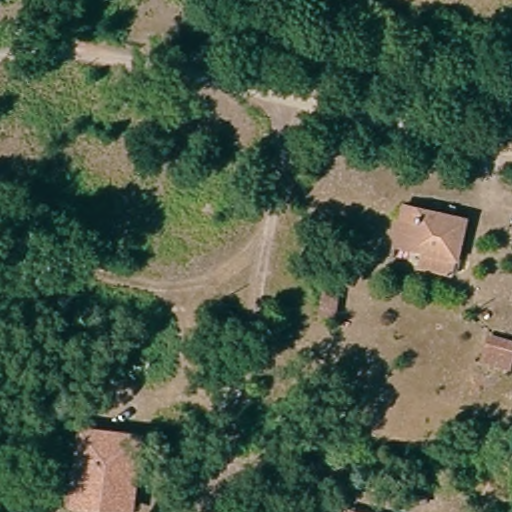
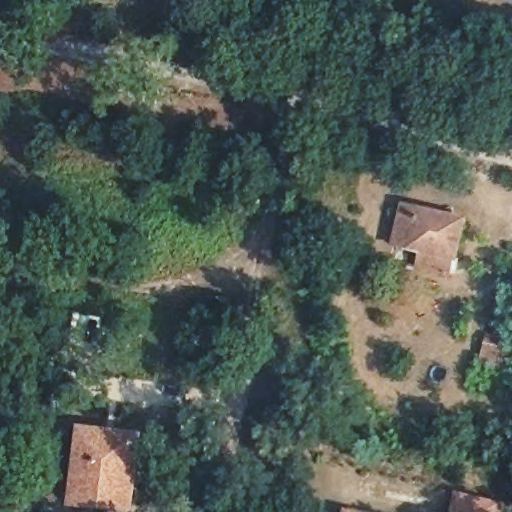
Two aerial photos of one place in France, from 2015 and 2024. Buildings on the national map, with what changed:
unchanged [(443,280),(418,274),(421,258),(391,251),(401,211),(463,225),(453,265),(450,280),(443,280)]
unchanged [(486,342),(488,333),(512,339),(512,371),(480,363),(486,342)]
unchanged [(66,498),(68,484),(77,425),(133,434),(124,492),(122,506),(66,498)]
new [(505,512),(449,512),(454,492),(507,504),(505,512)]

